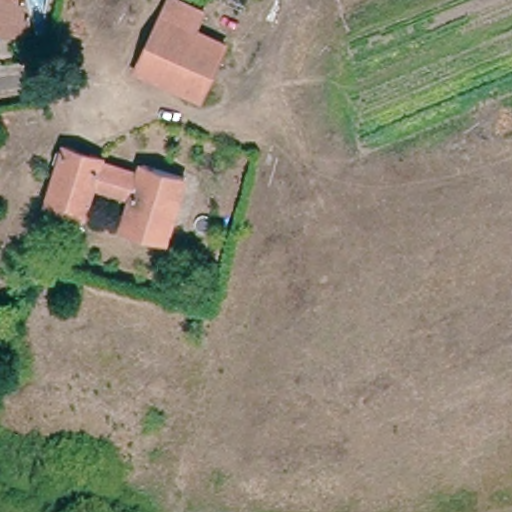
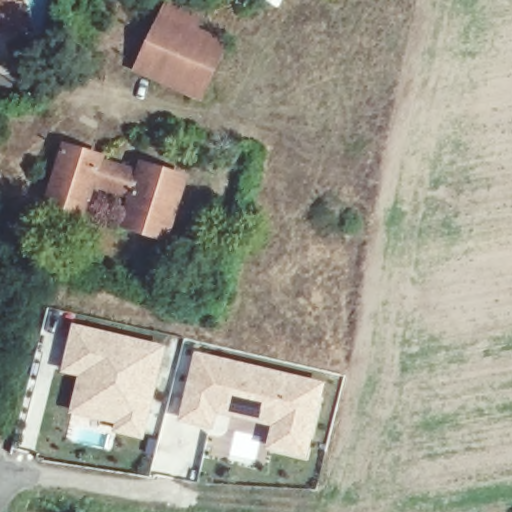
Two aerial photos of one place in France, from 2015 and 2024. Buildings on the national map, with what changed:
unchanged [(0,33),(0,0),(20,0),(20,3),(26,3),(26,18),(32,18),(32,34),(23,34),(0,33)]
unchanged [(164,6),(200,21),(191,41),(220,54),(196,107),(132,79),(164,6)]
unchanged [(102,169),(102,173),(140,185),(142,175),(185,189),(167,249),(125,236),(134,207),(96,195),(86,226),(47,214),(60,175),(55,173),(58,162),(63,163),(65,157),(102,169)]
new [(167,346),(144,440),(112,433),(114,425),(69,413),(77,377),(61,373),(72,323),(167,346)]
new [(265,449),(272,426),(217,413),(212,429),(177,421),(195,352),(325,382),(307,457),(265,449)]

